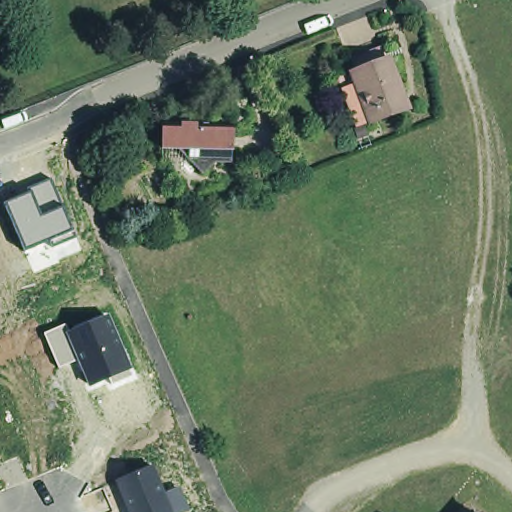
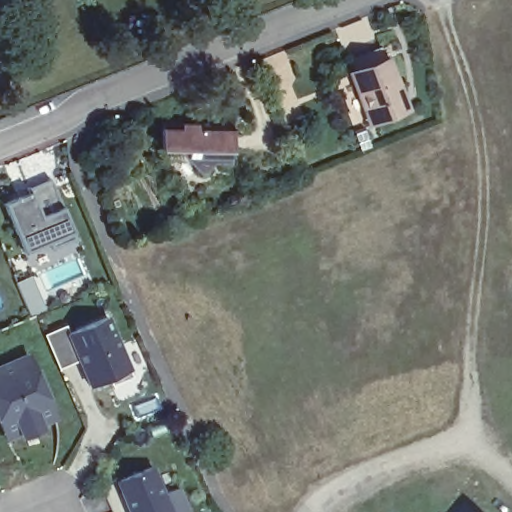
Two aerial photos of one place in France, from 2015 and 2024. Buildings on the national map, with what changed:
unchanged [(372,136),(355,89),(349,73),(384,59),(391,76),(408,123),(372,136)]
unchanged [(155,155),(156,129),(225,132),(222,171),(205,170),(194,184),(180,166),(155,164),(155,155)]
unchanged [(76,238),(53,248),(50,241),(25,251),(4,202),(30,190),(29,188),(52,179),(76,238)]
unchanged [(112,385),(111,379),(89,388),(77,362),(58,369),(42,333),(65,323),(68,331),(109,314),(132,369),(129,371),(131,376),(112,385)]
new [(41,426),(42,429),(21,439),(20,435),(5,442),(0,431),(0,363),(28,351),(57,419),(41,426)]
unchanged [(189,512),(127,512),(113,481),(154,464),(166,492),(181,486),(191,511),(189,512)]

